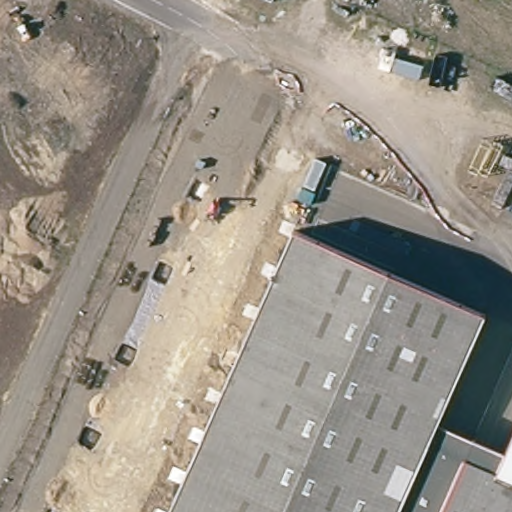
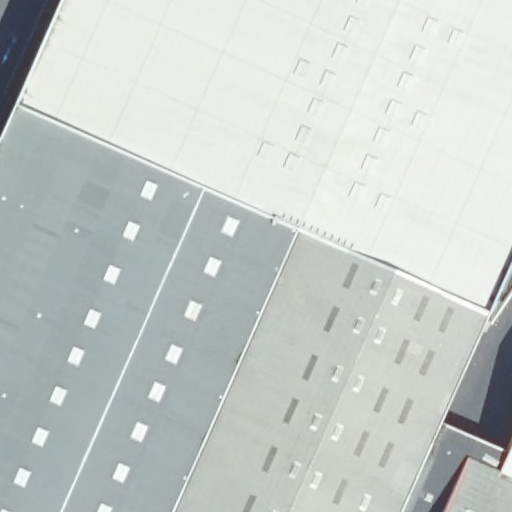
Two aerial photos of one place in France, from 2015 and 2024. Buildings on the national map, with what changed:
new [(58,0),(512,0),(512,237),(483,297),(308,206),(301,220),(297,230),(197,186),(53,512),(0,512),(0,131),(11,105),(58,0)]
demolished [(266,6),(256,0),(270,0),(266,6)]
new [(167,512),(54,512),(197,186),(297,230),(278,271),(167,512)]
unchanged [(483,297),(428,418),(386,512),(167,512),(278,271),(308,206),(483,297)]
unchanged [(386,512),(428,418),(474,437),(440,512),(386,512)]
unchanged [(504,450),(512,434),(512,512),(440,512),(474,437),(504,450)]

